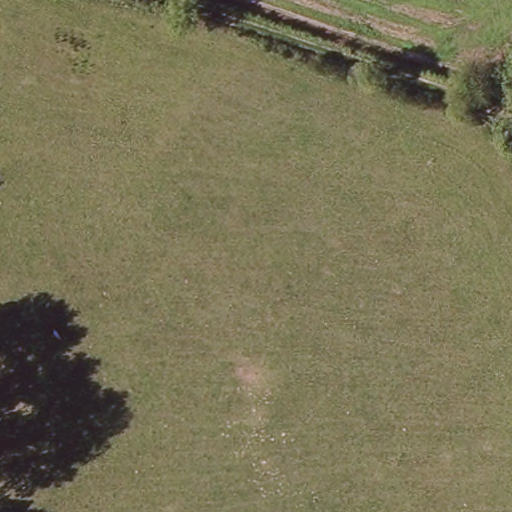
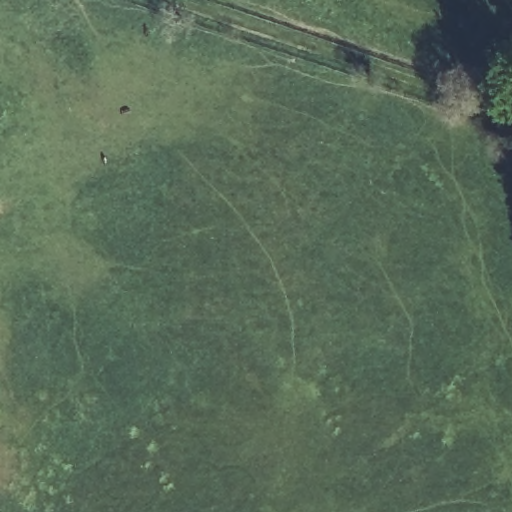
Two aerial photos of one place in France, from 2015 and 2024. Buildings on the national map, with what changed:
[]

